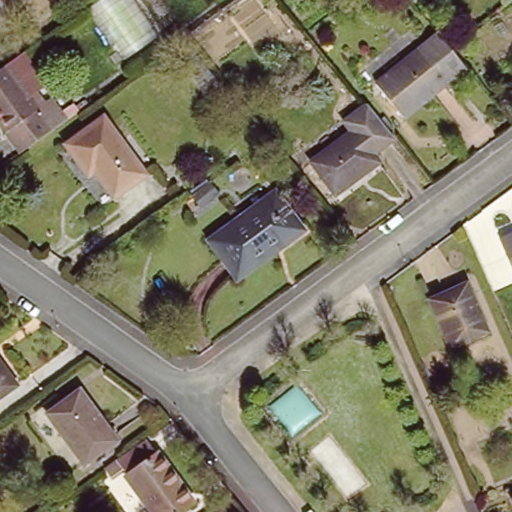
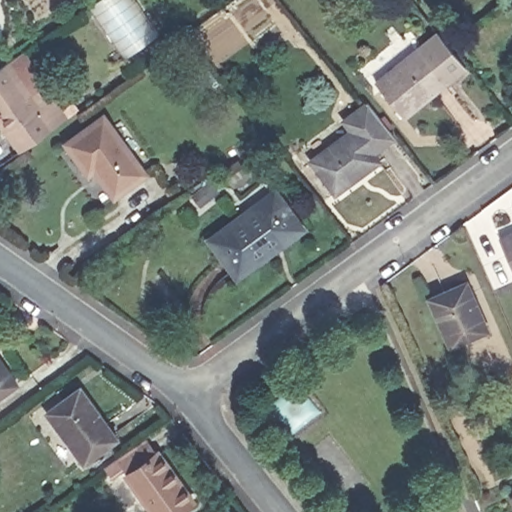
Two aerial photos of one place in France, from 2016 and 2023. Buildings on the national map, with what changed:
unchanged [(454,50),(470,69),(451,85),(407,119),(380,84),(443,36),(454,50)]
unchanged [(21,149),(0,121),(0,65),(26,46),(49,79),(41,85),(49,97),(55,93),(63,104),(75,95),(82,104),(70,113),(21,149)]
unchanged [(145,164),(113,187),(95,161),(89,165),(68,134),(105,108),(145,164)]
unchanged [(363,168),(369,175),(324,208),(301,176),(341,147),(333,135),(357,117),(384,152),(363,168)]
unchanged [(308,229),(285,245),(241,276),(238,271),(212,237),(279,188),(308,229)]
unchanged [(512,238),(512,263),(503,242),(512,238)]
unchanged [(453,346),(432,297),(470,281),(490,330),(453,346)]
unchanged [(15,384),(0,395),(0,364),(15,384)]
unchanged [(78,466),(43,418),(78,393),(113,442),(78,466)]
unchanged [(188,499),(197,512),(155,512),(136,485),(138,483),(130,471),(160,450),(193,496),(188,499)]

